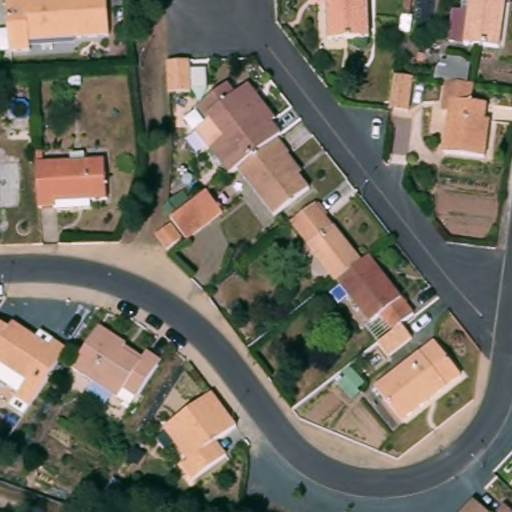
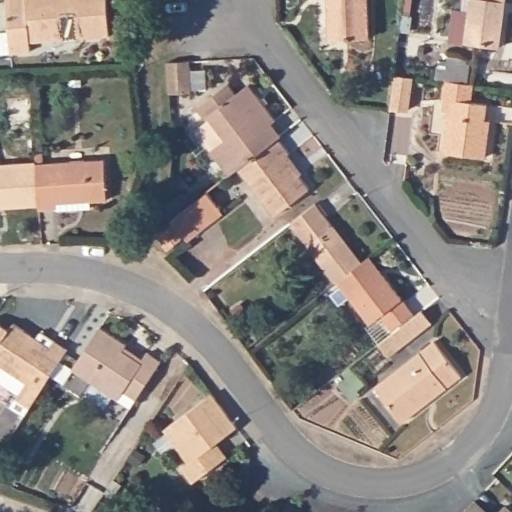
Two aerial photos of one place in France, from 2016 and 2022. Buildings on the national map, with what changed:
unchanged [(115,34),(37,39),(37,49),(11,51),(5,47),(4,35),(9,29),(17,29),(14,0),(112,0),(115,34)]
unchanged [(372,32),(350,33),(333,34),(332,0),(371,0),(372,32)]
unchanged [(458,22),(473,24),(475,6),(455,4),(455,0),(510,0),(509,11),(503,58),(470,53),(455,51),(458,22)]
unchanged [(184,62),(186,94),(165,96),(162,63),(184,62)]
unchanged [(402,77),(398,108),(383,106),(387,75),(402,77)]
unchanged [(486,131),(483,154),(441,149),(447,105),(439,104),(440,94),(442,76),(471,80),(469,96),(485,98),(482,113),(488,114),(486,131)]
unchanged [(242,83),(270,118),(266,122),(276,134),(270,138),(232,168),(224,175),(205,150),(214,142),(188,110),(195,104),(221,82),(230,93),(242,83)]
unchanged [(282,152),(278,156),(305,188),(269,216),(232,168),(270,138),(282,152)]
unchanged [(51,147),(52,159),(110,154),(114,194),(96,196),(97,205),(64,207),(64,204),(46,205),(43,147),(51,147)]
unchanged [(10,182),(0,183),(0,163),(9,162),(10,182)]
unchanged [(219,212),(183,240),(168,219),(202,192),(219,212)]
unchanged [(314,197),(360,257),(336,276),(290,217),(314,197)]
unchanged [(175,239),(162,248),(155,236),(165,225),(175,239)]
unchanged [(381,310),(370,319),(336,276),(360,257),(368,251),(413,309),(401,319),(411,331),(387,350),(377,338),(393,325),(381,310)]
unchanged [(12,321),(35,336),(40,331),(66,349),(40,388),(24,413),(10,405),(16,394),(0,383),(0,325),(7,329),(12,321)]
unchanged [(70,362),(97,321),(124,338),(120,345),(138,357),(145,346),(157,355),(134,392),(125,405),(114,398),(117,392),(70,362)]
unchanged [(459,372),(404,416),(376,382),(431,338),(459,372)]
unchanged [(227,455),(222,458),(221,459),(194,480),(182,465),(190,460),(165,428),(211,392),(233,421),(236,425),(230,430),(216,441),(224,451),(227,455)]
unchanged [(480,512),(462,512),(470,503),(480,512)]
unchanged [(505,511),(507,512),(497,512),(501,507),(505,511)]

